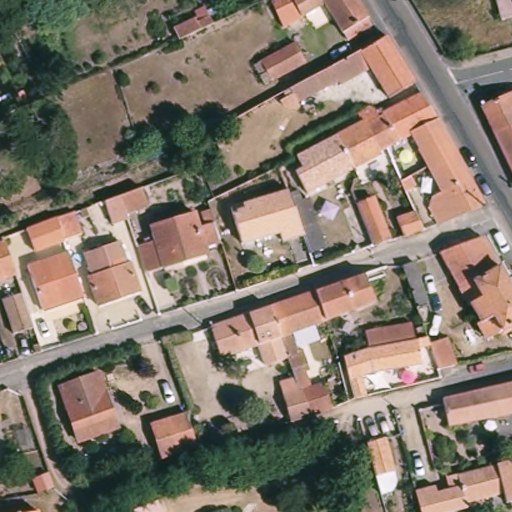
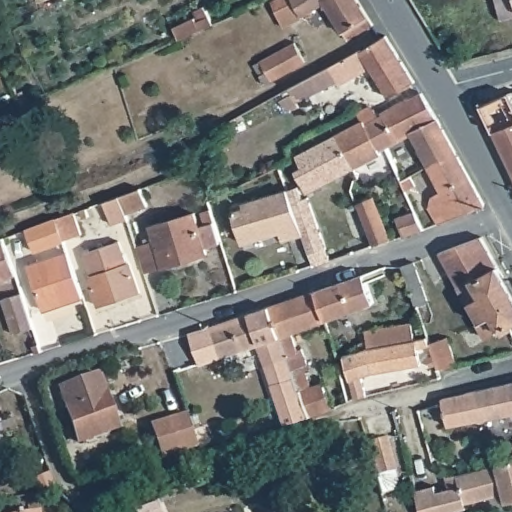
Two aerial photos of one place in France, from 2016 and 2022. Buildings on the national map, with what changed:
unchanged [(282,0),(280,1),(279,0),(282,0)]
unchanged [(328,10),(300,23),(290,2),(294,0),(358,0),(375,29),(350,44),(328,10)]
unchanged [(495,0),(512,0),(512,20),(502,22),(495,0)]
unchanged [(177,37),(170,20),(202,4),(212,22),(178,39),(177,37)]
unchanged [(406,72),(411,80),(413,82),(387,98),(370,69),(339,85),(336,81),(295,104),(290,95),(285,98),(281,92),(307,77),(310,75),(316,72),(345,55),(350,52),(356,48),(358,50),(376,39),(383,35),(406,72)]
unchanged [(300,65),(286,73),(285,74),(262,86),(258,77),(264,75),(258,63),(293,45),(305,64),(300,65)]
unchanged [(510,94),(512,93),(512,126),(495,134),(483,107),(510,94)]
unchanged [(380,114),(420,94),(421,94),(443,134),(445,136),(468,179),(482,205),(465,212),(436,225),(425,207),(428,196),(436,192),(412,151),(413,150),(405,137),(400,139),(403,146),(396,149),(394,143),(380,117),(380,114)]
unchanged [(350,166),(334,137),(360,122),(355,114),(367,107),(372,110),(375,115),(376,119),(380,117),(394,143),(378,152),(379,154),(351,169),(350,166)]
unchanged [(512,126),(512,168),(495,134),(512,126)]
unchanged [(306,192),(296,174),(312,164),(307,152),(334,137),(350,166),(351,169),(306,192)]
unchanged [(118,196),(122,195),(140,190),(145,207),(124,215),(126,220),(110,226),(101,202),(105,201),(118,196)]
unchanged [(300,199),(306,197),(323,247),(308,252),(303,237),(283,244),(281,232),(241,243),(233,214),(244,210),(244,205),(287,192),(295,190),(300,199)]
unchanged [(357,214),(356,210),(354,205),(370,199),(373,207),(385,241),(370,246),(357,214)]
unchanged [(400,215),(415,210),(425,227),(406,234),(400,215)]
unchanged [(91,211),(94,219),(89,221),(84,222),(81,214),(85,212),(91,211)]
unchanged [(56,222),(58,222),(71,217),(80,239),(63,244),(64,247),(35,258),(25,234),(27,233),(56,222)]
unchanged [(219,247),(203,252),(205,259),(144,276),(137,249),(152,245),(149,230),(194,218),(197,231),(213,227),(219,247)]
unchanged [(488,261),(493,271),(499,282),(503,280),(507,286),(512,283),(512,294),(512,301),(510,302),(512,305),(512,321),(481,339),(472,323),(475,322),(465,303),(461,305),(433,254),(442,250),(475,237),(488,261)]
unchanged [(119,241),(126,263),(129,262),(139,293),(119,300),(100,247),(119,241)]
unchanged [(2,242),(15,280),(0,286),(0,243),(2,242)]
unchanged [(119,300),(99,307),(88,276),(91,274),(84,253),(100,247),(119,300)]
unchanged [(71,267),(73,273),(80,302),(41,314),(26,270),(67,257),(71,267)]
unchanged [(401,267),(411,263),(425,302),(415,306),(401,267)]
unchanged [(318,296),(317,293),(366,277),(377,308),(328,326),(318,296)]
unchanged [(29,327),(7,335),(0,314),(0,298),(16,292),(29,327)]
unchanged [(296,378),(294,372),(290,359),(288,355),(283,341),(275,317),(272,310),(303,298),(307,297),(317,293),(318,296),(328,326),(295,337),(315,392),(327,390),(336,416),(315,422),(303,425),(295,427),(281,385),(297,380),(296,378)]
unchanged [(224,361),(214,332),(229,326),(272,310),(275,317),(283,341),(224,361)]
unchanged [(362,349),(359,332),(407,323),(410,340),(421,338),(423,343),(442,338),(451,366),(432,370),(424,346),(412,348),(415,365),(367,372),(356,377),(361,395),(361,396),(348,398),(336,356),(357,350),(362,349)]
unchanged [(416,332),(413,333),(411,327),(415,327),(416,332)]
unchanged [(99,377),(117,432),(79,445),(60,391),(99,377)]
unchanged [(450,420),(441,422),(437,402),(488,391),(512,385),(512,413),(451,426),(450,420)]
unchanged [(187,411),(198,447),(161,458),(150,422),(187,411)]
unchanged [(383,495),(375,461),(391,457),(395,456),(405,490),(399,491),(383,495)]
unchanged [(505,495),(466,502),(467,507),(444,512),(422,512),(417,487),(436,484),(437,489),(450,486),(447,474),(512,459),(512,501),(506,502),(505,495)]
unchanged [(126,510),(149,500),(154,512),(127,512),(126,510)]

